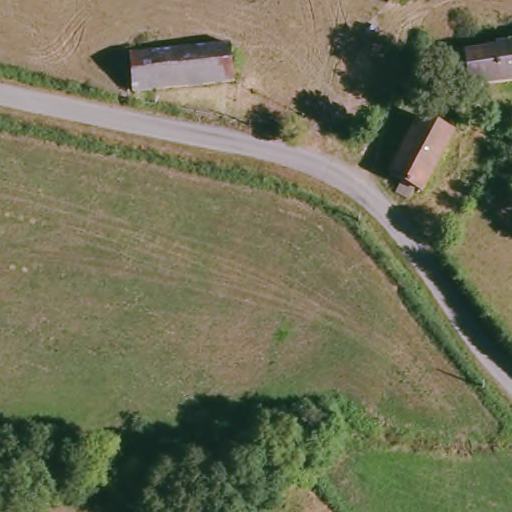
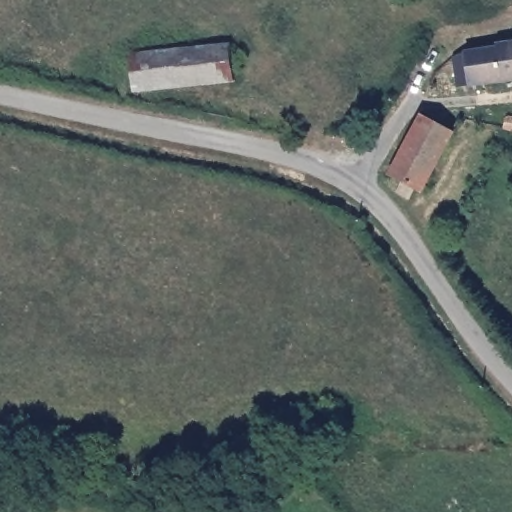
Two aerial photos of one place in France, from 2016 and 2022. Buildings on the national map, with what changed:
unchanged [(464,89),(461,57),(503,50),(504,47),(512,45),(512,83),(464,89)]
unchanged [(133,56),(231,46),(236,87),(139,94),(133,56)]
unchanged [(458,135),(427,193),(422,191),(414,200),(401,193),(407,183),(394,176),(426,117),(458,135)]
unchanged [(507,129),(508,119),(512,119),(512,129),(507,129)]

